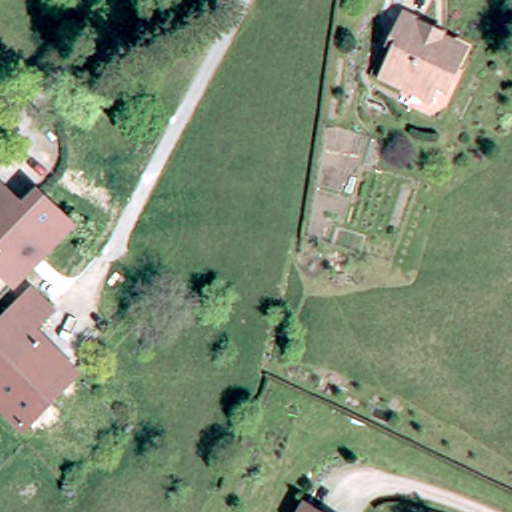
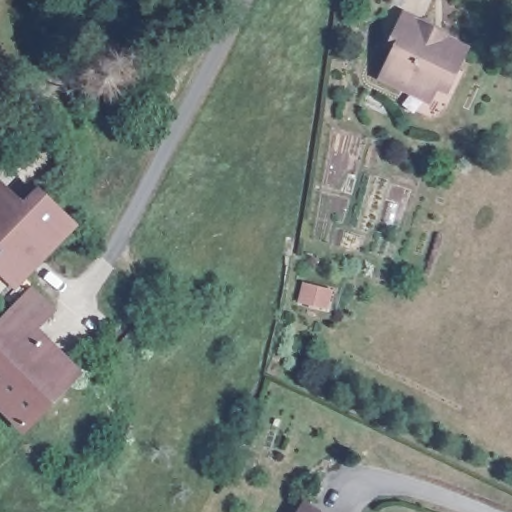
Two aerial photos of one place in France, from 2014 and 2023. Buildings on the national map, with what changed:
unchanged [(428,40),(462,54),(457,66),(448,62),(441,82),(435,79),(430,95),(390,80),(400,54),(393,49),(403,22),(431,32),(428,40)]
unchanged [(1,181),(25,202),(42,188),(72,219),(16,275),(0,260),(0,182),(1,181)]
unchanged [(50,303),(31,322),(75,366),(24,418),(0,395),(0,318),(32,286),(50,303)]
unchanged [(318,512),(293,512),(300,501),(318,512)]

